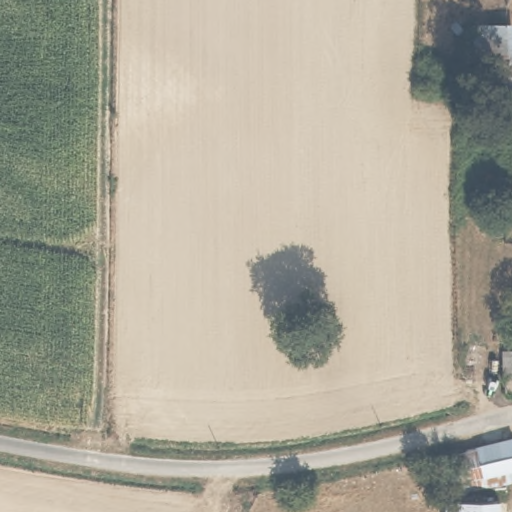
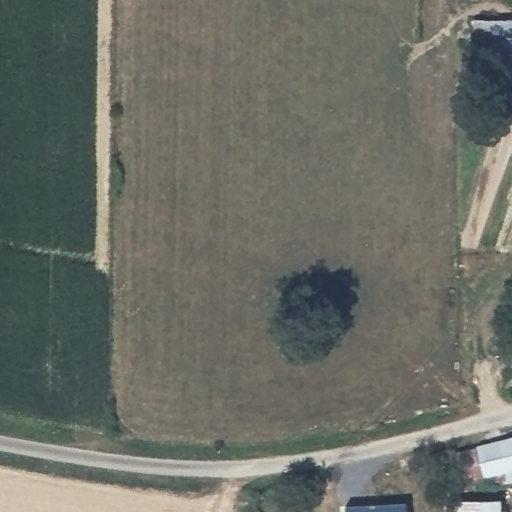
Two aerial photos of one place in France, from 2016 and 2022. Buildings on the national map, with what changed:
unchanged [(472,74),(472,21),(512,23),(512,76),(472,74)]
unchanged [(502,386),(503,374),(498,374),(500,349),(512,350),(512,386),(502,386)]
unchanged [(500,474),(498,486),(457,493),(445,451),(512,432),(512,470),(500,474)]
unchanged [(501,512),(444,512),(444,497),(501,497),(501,512)]
new [(406,512),(344,512),(343,505),(405,502),(406,512)]

